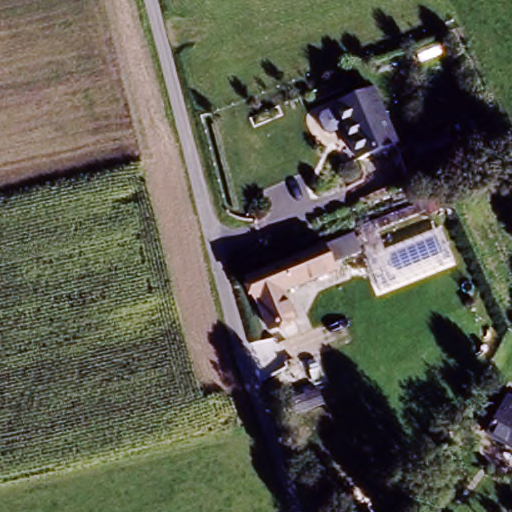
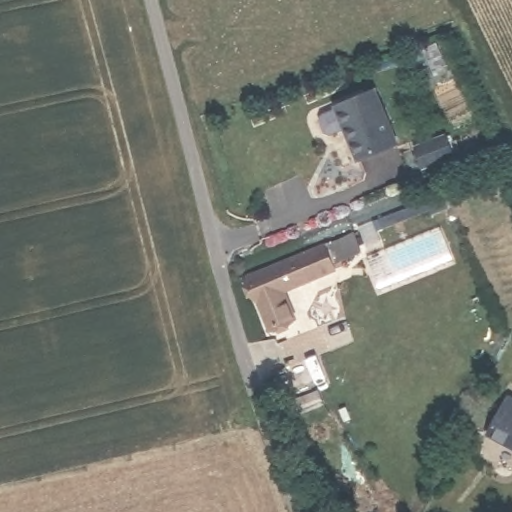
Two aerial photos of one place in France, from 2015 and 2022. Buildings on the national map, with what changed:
unchanged [(374,90),(400,144),(356,161),(335,107),(374,90)]
unchanged [(264,326),(245,272),(351,236),(358,256),(331,266),(333,272),(278,291),(287,318),(264,326)]
unchanged [(512,407),(508,403),(512,400),(512,407)]
unchanged [(508,403),(512,407),(512,447),(487,421),(508,403)]

